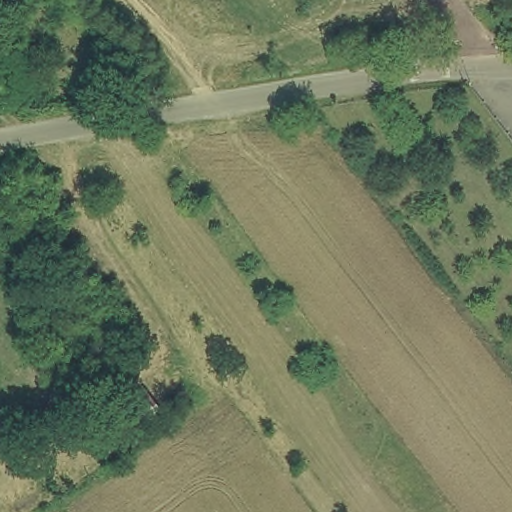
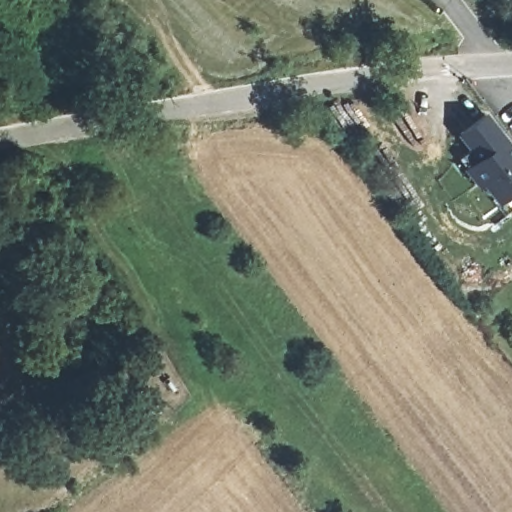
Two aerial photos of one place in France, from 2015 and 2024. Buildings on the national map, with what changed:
new [(495,203),(480,184),(466,166),(459,156),(462,154),(471,146),(460,132),(485,113),(512,148),(512,208),(504,215),(495,203)]

